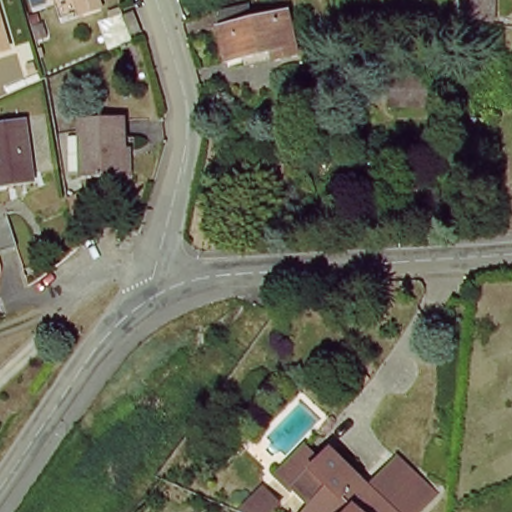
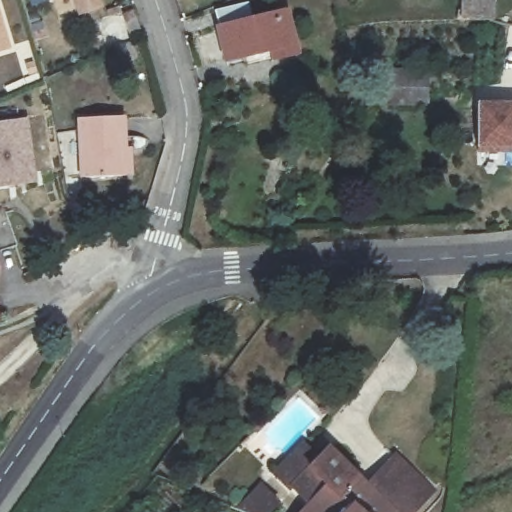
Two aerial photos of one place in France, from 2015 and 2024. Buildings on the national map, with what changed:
unchanged [(77,0),(96,0),(79,6),(77,0)]
unchanged [(467,0),(475,0),(494,4),(491,22),(479,21),(464,19),(467,0)]
unchanged [(277,49),(230,60),(224,24),(221,6),(251,1),(256,18),(271,15),(277,49)]
unchanged [(296,10),(303,56),(279,59),(277,49),(271,15),(296,10)]
unchanged [(146,31),(135,36),(128,16),(139,13),(146,31)]
unchanged [(0,49),(0,14),(10,46),(0,49)]
unchanged [(397,63),(432,63),(432,96),(397,96),(397,63)]
new [(512,102),(512,143),(481,143),(482,102),(512,102)]
unchanged [(85,178),(81,118),(124,115),(128,176),(85,178)]
unchanged [(42,179),(3,186),(0,186),(0,124),(33,119),(42,179)]
unchanged [(0,221),(0,212),(20,205),(33,236),(9,245),(0,221)]
unchanged [(309,501),(304,495),(294,503),(284,493),(286,489),(276,479),(303,448),(315,459),(326,446),(331,451),(340,458),(371,483),(372,484),(382,493),(392,501),(384,512),(364,512),(344,497),(341,502),(336,512),(303,512),(309,501)]
unchanged [(398,456),(433,490),(413,512),(384,512),(392,501),(382,493),(372,484),(398,456)]
unchanged [(258,488),(274,506),(268,512),(237,512),(234,511),(253,493),(258,488)]
unchanged [(341,502),(344,497),(364,512),(336,512),(341,502)]

